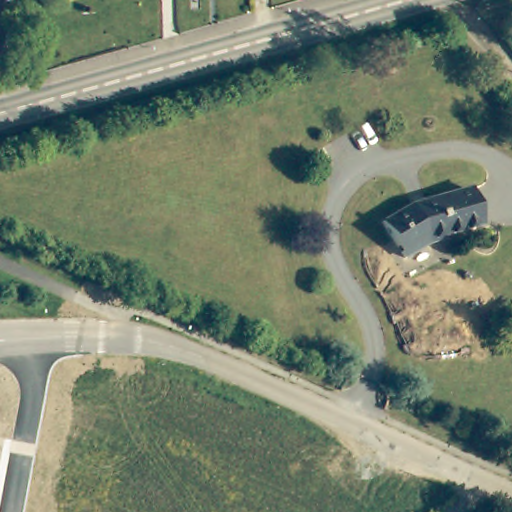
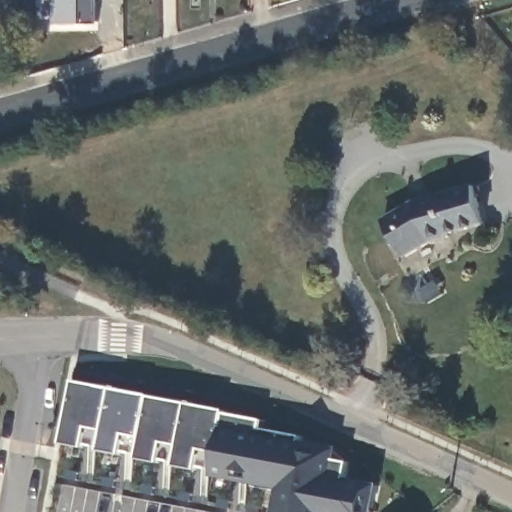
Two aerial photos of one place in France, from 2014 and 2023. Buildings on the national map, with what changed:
new [(55,28),(55,0),(99,0),(99,26),(55,28)]
unchanged [(413,200),(474,184),(484,221),(451,230),(452,233),(428,242),(407,256),(387,217),(413,200)]
new [(226,410),(225,414),(264,421),(263,429),(303,437),(302,442),(339,449),(337,460),(350,463),(347,479),(379,485),(374,512),(276,512),(279,489),(213,478),(214,471),(66,444),(76,381),(226,410)]

